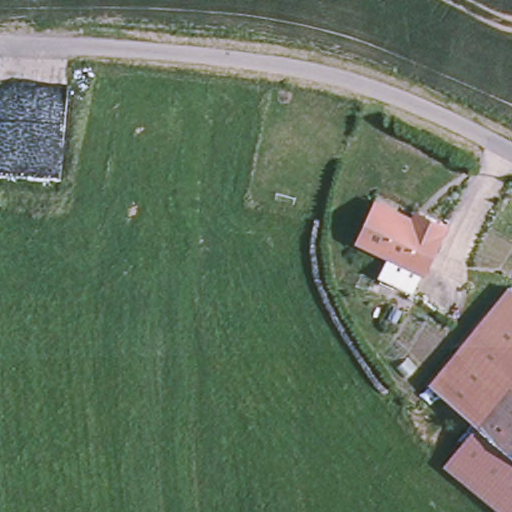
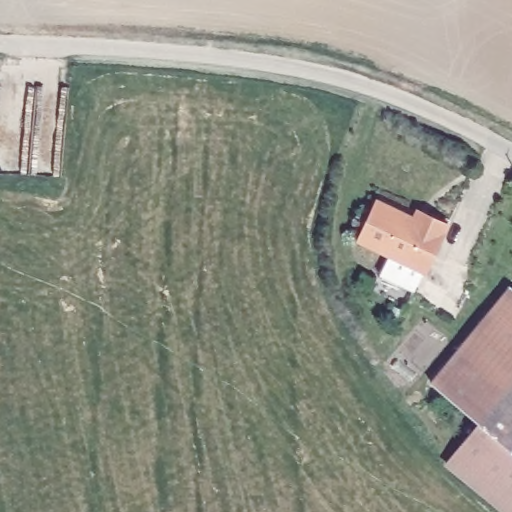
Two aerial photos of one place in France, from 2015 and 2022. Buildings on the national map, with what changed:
unchanged [(428,262),(425,262),(416,280),(382,265),(390,245),(360,231),(380,191),(416,209),(420,200),(428,204),(449,214),(428,262)]
unchanged [(482,424),(433,384),(512,289),(512,512),(507,512),(448,465),(482,424)]

